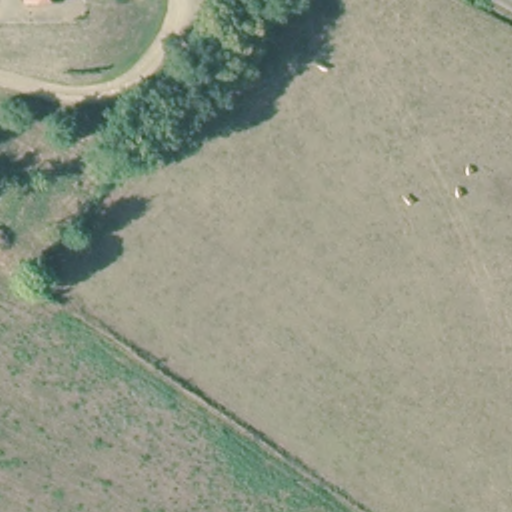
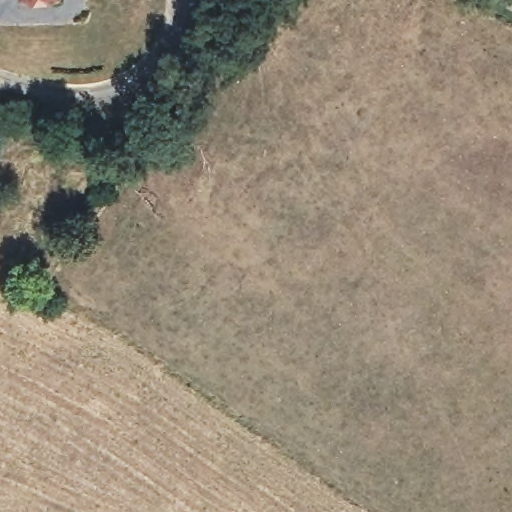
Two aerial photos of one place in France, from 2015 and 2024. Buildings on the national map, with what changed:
unchanged [(47,2),(30,4),(29,0),(49,0),(47,2)]

